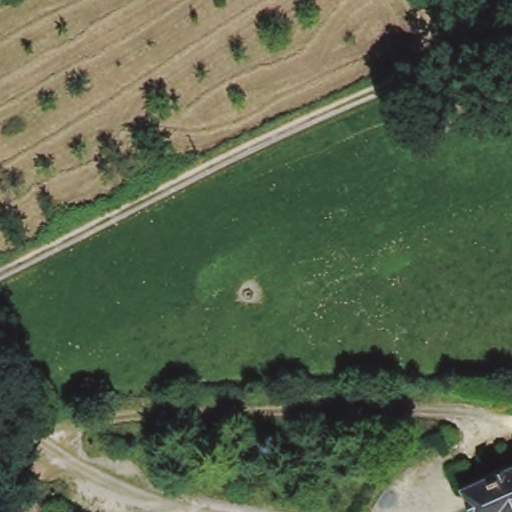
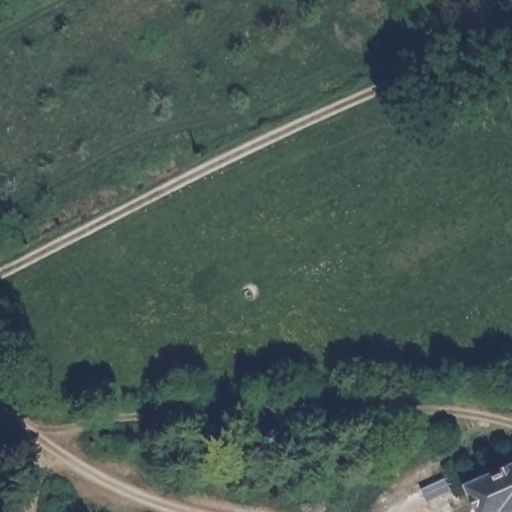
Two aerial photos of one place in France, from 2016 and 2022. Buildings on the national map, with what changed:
unchanged [(499,512),(498,510),(495,512),(477,512),(465,487),(512,464),(512,512),(499,512)]

